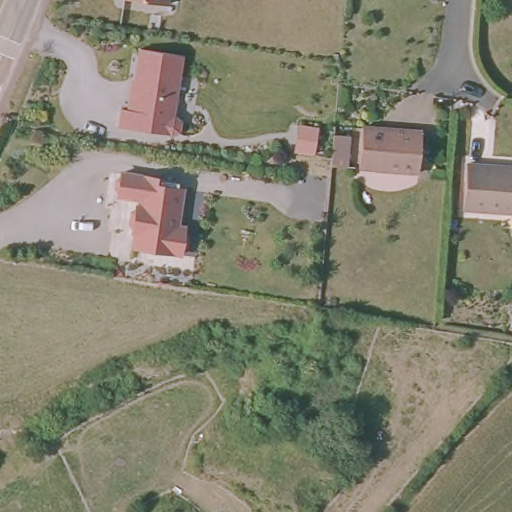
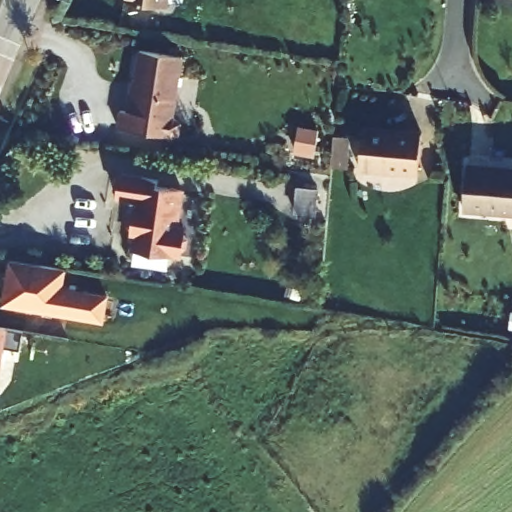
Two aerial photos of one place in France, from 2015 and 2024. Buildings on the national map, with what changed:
unchanged [(166,3),(140,0),(166,0),(166,3)]
unchanged [(182,55),(175,115),(180,127),(178,131),(168,134),(117,127),(120,109),(125,109),(130,80),(135,80),(138,50),(182,55)]
unchanged [(357,168),(360,126),(422,130),(419,171),(357,168)]
unchanged [(465,163),(512,167),(512,212),(460,207),(465,163)]
unchanged [(135,262),(135,257),(132,257),(135,238),(133,238),(133,235),(130,231),(132,218),(137,215),(137,212),(139,212),(140,205),(118,202),(119,199),(115,194),(117,185),(122,182),(122,179),(158,184),(157,191),(183,195),(177,235),(184,236),(183,241),(187,246),(185,255),(180,258),(180,264),(170,262),(169,268),(135,262)]
new [(63,285),(109,293),(103,322),(1,306),(9,260),(67,268),(63,285)]
new [(0,371),(0,326),(7,327),(0,371)]

